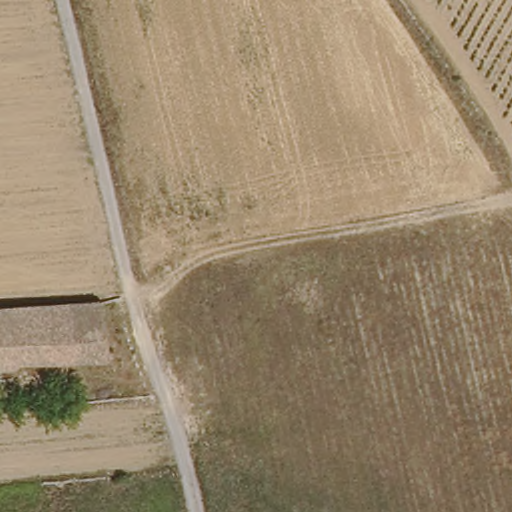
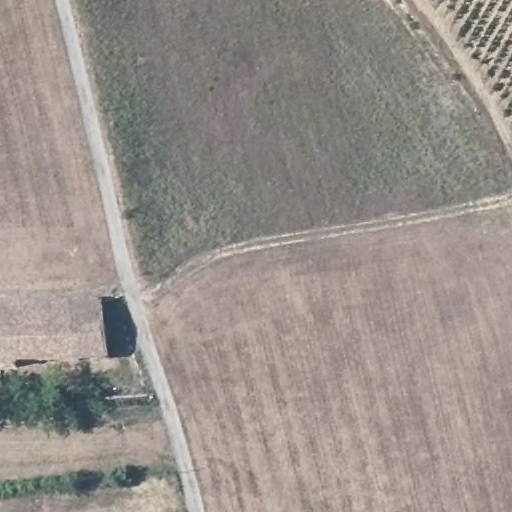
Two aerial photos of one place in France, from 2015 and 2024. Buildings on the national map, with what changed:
unchanged [(84,361),(54,363),(48,303),(102,299),(107,335),(110,360),(84,361)]
unchanged [(54,363),(27,366),(21,305),(48,303),(54,363)]
unchanged [(0,307),(21,305),(27,366),(27,371),(0,373),(0,307)]

